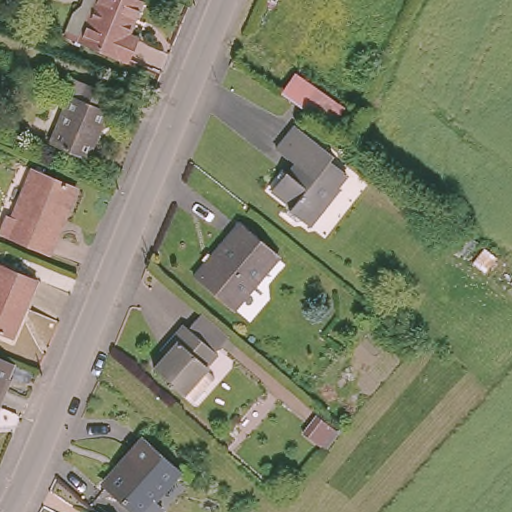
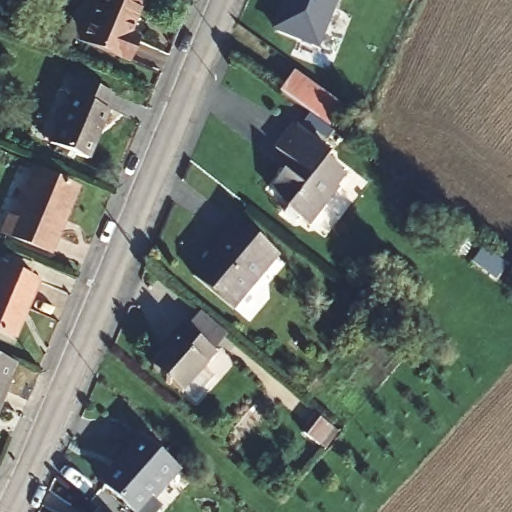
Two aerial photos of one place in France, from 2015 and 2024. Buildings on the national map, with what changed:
unchanged [(123,34),(132,38),(123,60),(77,41),(94,0),(131,0),(135,2),(123,34)]
new [(290,0),(338,0),(319,47),(278,30),(290,0)]
unchanged [(70,92),(61,88),(66,76),(114,96),(108,109),(110,109),(87,161),(49,145),(70,92)]
unchanged [(347,114),(332,134),(300,110),(284,99),(300,79),(347,114)]
unchanged [(286,214),(289,210),(292,206),(271,190),(285,172),(293,177),(300,168),(276,149),(295,125),(332,155),(329,160),(346,174),(334,190),(336,192),(335,193),(310,226),(300,218),(297,222),(286,214)]
unchanged [(7,216),(29,167),(70,184),(44,249),(0,230),(0,214),(0,213),(7,216)]
unchanged [(274,257),(232,310),(191,275),(231,222),(274,257)]
unchanged [(484,248),(495,257),(485,271),(472,262),(484,248)]
unchanged [(8,336),(0,333),(0,264),(33,277),(8,336)]
unchanged [(177,340),(170,336),(182,322),(187,329),(200,313),(227,337),(214,353),(217,355),(205,369),(213,375),(192,398),(185,393),(182,398),(152,367),(177,340)]
unchanged [(135,512),(129,512),(101,488),(115,470),(112,467),(138,437),(172,468),(135,512)]

